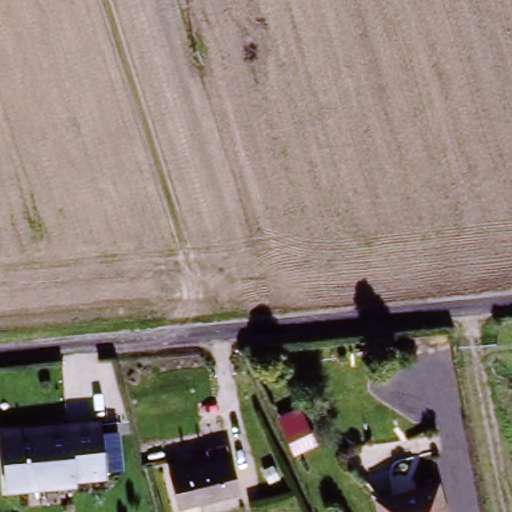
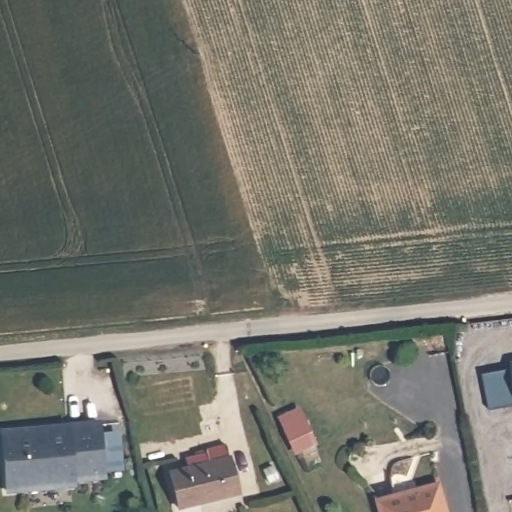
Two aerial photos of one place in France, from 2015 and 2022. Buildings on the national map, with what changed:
new [(512,369),(512,407),(488,411),(482,374),(512,369)]
unchanged [(321,445),(299,451),(285,416),(306,409),(321,445)]
unchanged [(55,430),(76,430),(76,425),(108,425),(108,481),(77,481),(77,486),(10,486),(10,430),(42,430),(42,437),(55,437),(55,430)]
unchanged [(209,455),(228,449),(242,497),(191,512),(182,512),(172,477),(212,465),(209,455)]
unchanged [(379,504),(439,488),(445,512),(381,512),(379,504)]

